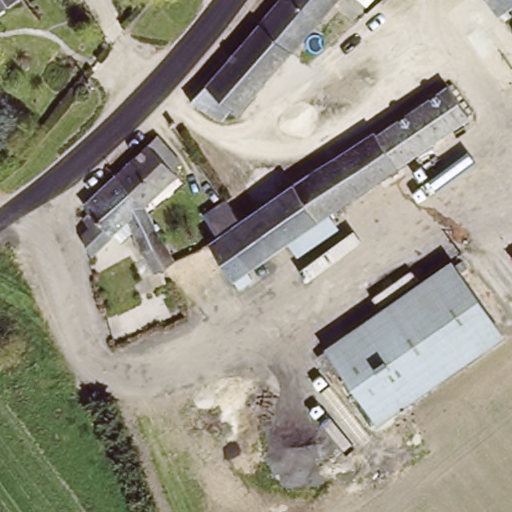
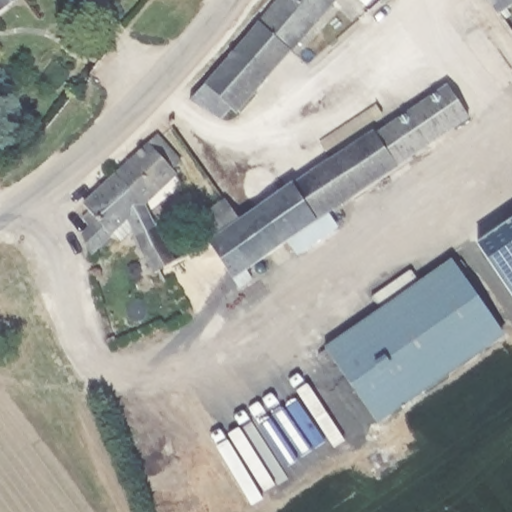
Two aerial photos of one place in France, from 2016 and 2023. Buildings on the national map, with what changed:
unchanged [(0,6),(0,0),(8,0),(0,6)]
unchanged [(277,0),(332,0),(289,50),(256,24),(277,0)]
unchanged [(488,0),(512,0),(512,10),(501,18),(488,0)]
unchanged [(231,115),(225,110),(215,122),(184,104),(256,24),(289,50),(231,115)]
unchanged [(287,246),(246,275),(251,283),(238,291),(207,247),(215,241),(201,222),(226,204),(239,224),(371,132),(376,140),(447,90),(468,120),(329,217),(338,230),(296,259),(287,246)]
unchanged [(157,133),(181,160),(175,165),(178,169),(143,200),(115,172),(157,133)]
unchanged [(143,200),(176,260),(161,268),(168,281),(154,288),(141,263),(148,260),(133,230),(121,241),(111,231),(91,250),(86,230),(93,225),(85,215),(90,207),(84,201),(115,172),(143,200)]
new [(512,291),(479,244),(512,220),(512,291)]
unchanged [(381,420),(339,363),(331,367),(319,351),(457,258),(508,334),(381,420)]

